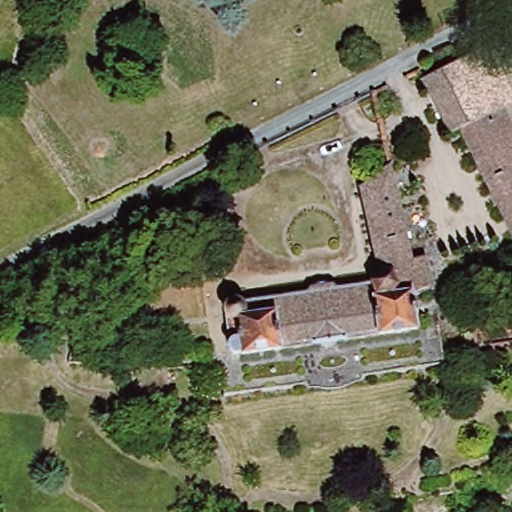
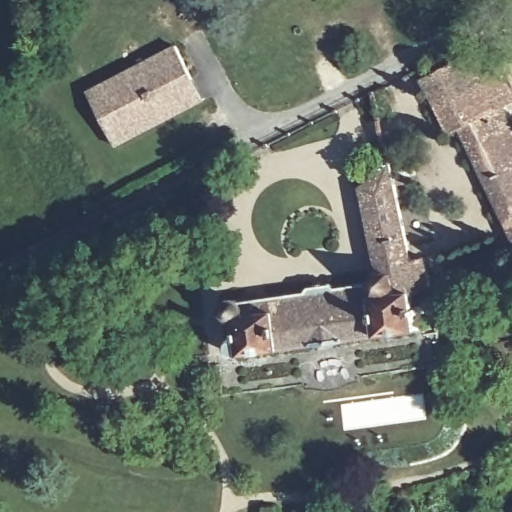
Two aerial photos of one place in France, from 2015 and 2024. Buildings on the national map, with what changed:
new [(88,91),(176,44),(204,101),(116,146),(88,91)]
unchanged [(482,47),(509,100),(496,106),(489,93),(472,102),(451,62),(482,47)]
unchanged [(509,239),(454,129),(443,134),(415,81),(451,62),(472,102),(489,93),(496,106),(512,137),(512,242),(510,242),(509,239)]
unchanged [(411,338),(236,364),(236,362),(225,353),(222,325),(236,312),(301,303),(304,298),(326,295),(331,299),(365,294),(372,283),(354,197),(385,174),(408,271),(421,268),(429,301),(406,302),(411,338)]

